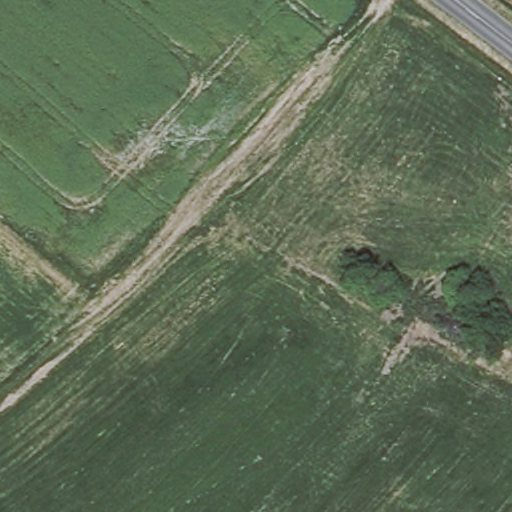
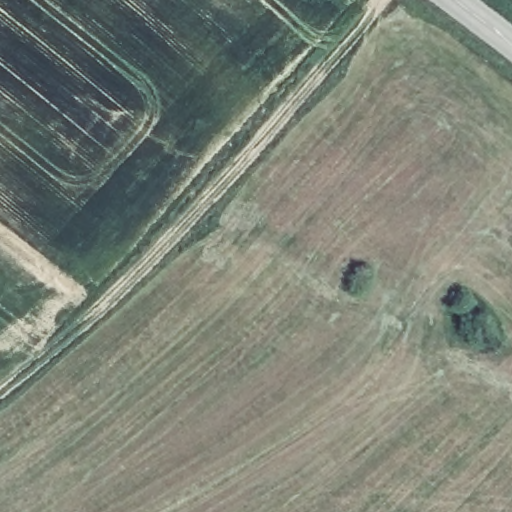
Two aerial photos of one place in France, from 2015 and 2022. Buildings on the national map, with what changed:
[]

